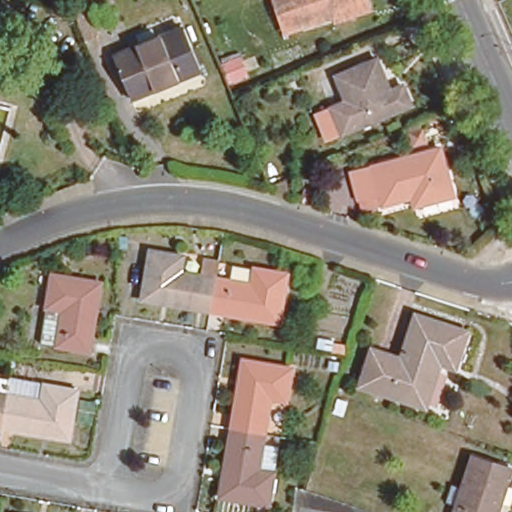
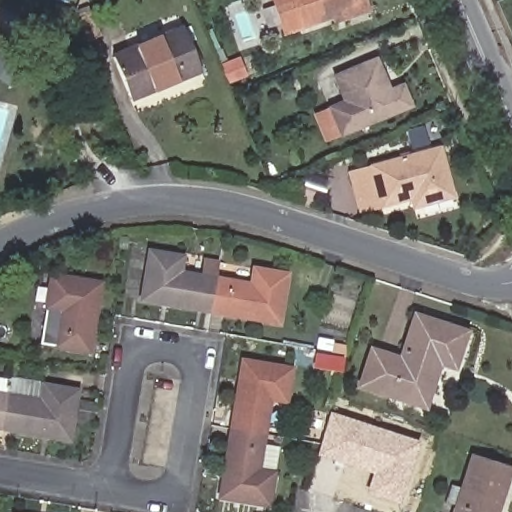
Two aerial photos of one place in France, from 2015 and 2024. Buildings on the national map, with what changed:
unchanged [(86,0),(95,0),(87,3),(86,0)]
unchanged [(332,15),(283,31),(273,0),(365,0),(366,3),(368,9),(334,21),(332,15)]
unchanged [(75,17),(89,12),(99,37),(85,42),(75,17)]
unchanged [(181,25),(200,66),(131,95),(113,53),(181,25)]
unchanged [(379,62),(393,93),(404,87),(412,107),(347,135),(337,109),(351,103),(340,78),(379,62)]
unchanged [(410,194),(381,203),(362,208),(358,194),(350,169),(370,164),(439,145),(449,184),(451,193),(420,202),(413,204),(410,194)]
unchanged [(283,180),(285,198),(270,193),(267,186),(283,180)]
unchanged [(126,231),(125,248),(118,249),(119,232),(126,231)]
unchanged [(254,264),(285,269),(277,318),(209,306),(142,295),(150,246),(182,252),(180,267),(199,270),(201,254),(216,256),(214,273),(250,280),(254,264)]
unchanged [(104,279),(93,347),(60,342),(45,339),(51,304),(56,271),(104,279)]
unchanged [(459,332),(447,367),(434,363),(418,407),(355,385),(366,350),(394,359),(408,316),(459,332)]
unchanged [(316,337),(331,340),(328,353),(313,350),(316,337)]
unchanged [(1,350),(0,350),(0,339),(3,339),(1,350)]
unchanged [(229,429),(240,360),(292,369),(286,403),(269,400),(263,435),(229,429)]
unchanged [(0,377),(12,379),(10,396),(4,428),(0,427),(0,377)]
unchanged [(10,396),(12,379),(13,379),(79,390),(71,438),(4,428),(10,396)]
new [(399,505),(365,493),(372,473),(315,455),(330,411),(421,441),(399,505)]
unchanged [(258,471),(272,473),(267,505),(218,498),(229,429),(263,435),(258,471)]
unchanged [(501,512),(456,512),(458,505),(450,502),(456,486),(464,489),(475,456),(512,468),(512,477),(501,512)]

